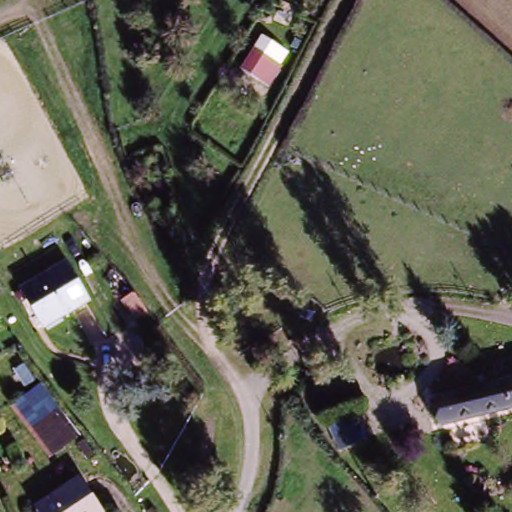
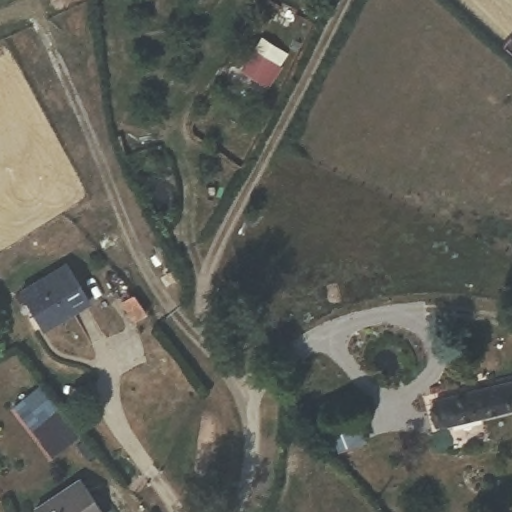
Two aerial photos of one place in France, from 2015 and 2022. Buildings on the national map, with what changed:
unchanged [(268,83),(261,78),(243,69),(256,46),(274,55),(281,59),(268,83)]
unchanged [(92,294),(48,332),(20,300),(63,266),(92,294)]
unchanged [(143,316),(133,323),(118,302),(128,296),(143,316)]
unchanged [(449,424),(443,400),(512,382),(512,407),(449,424)]
unchanged [(58,456),(26,417),(18,405),(45,385),(53,396),(84,436),(58,456)]
unchanged [(351,446),(339,421),(358,410),(370,435),(351,446)]
unchanged [(83,481),(106,512),(41,512),(83,481)]

